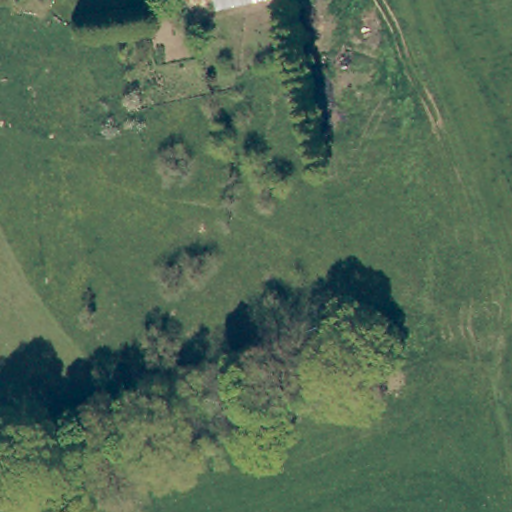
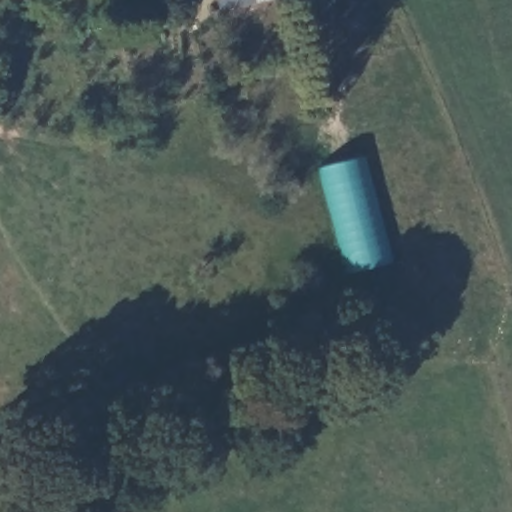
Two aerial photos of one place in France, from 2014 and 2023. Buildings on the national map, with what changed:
unchanged [(219,10),(217,0),(268,0),(219,10)]
new [(388,261),(341,272),(313,168),(361,155),(388,261)]

